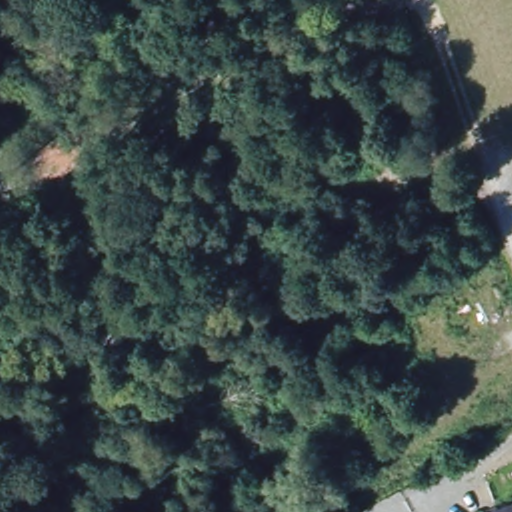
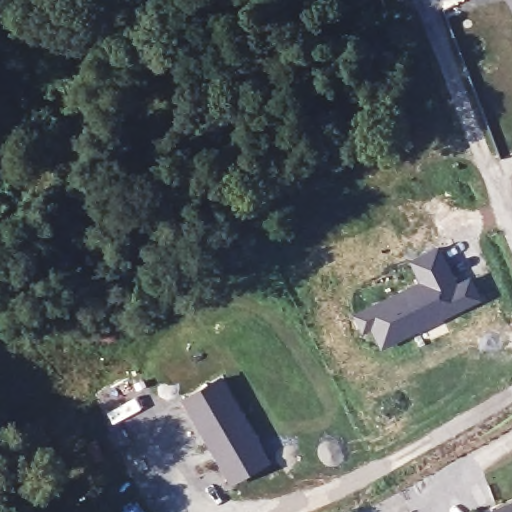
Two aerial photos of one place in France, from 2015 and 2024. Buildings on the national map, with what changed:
new [(507,0),(512,0),(512,10),(507,0)]
new [(419,282),(409,260),(439,245),(458,280),(472,274),(485,301),(431,329),(380,351),(371,332),(363,335),(354,314),(419,282)]
new [(234,482),(224,464),(186,399),(224,377),(261,443),(271,460),(234,482)]
unchanged [(512,509),(512,512),(505,512),(512,509)]

